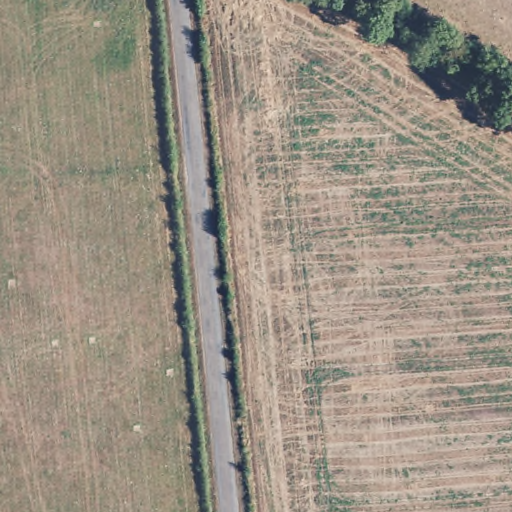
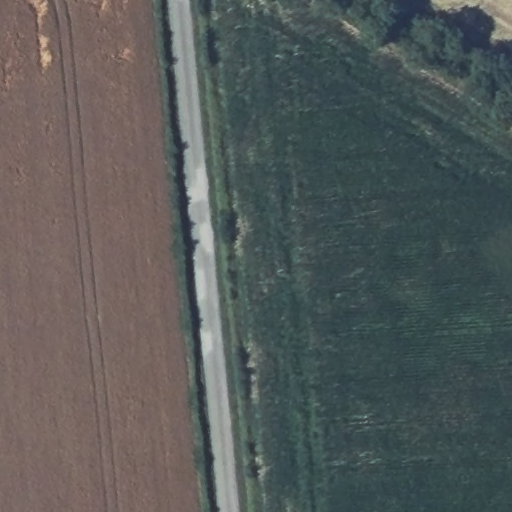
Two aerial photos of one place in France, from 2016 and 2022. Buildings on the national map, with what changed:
[]

